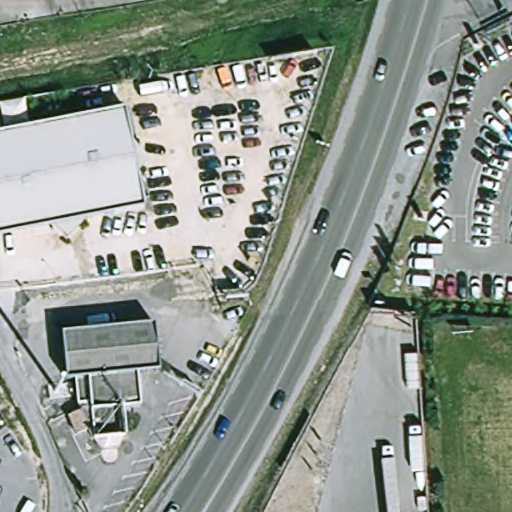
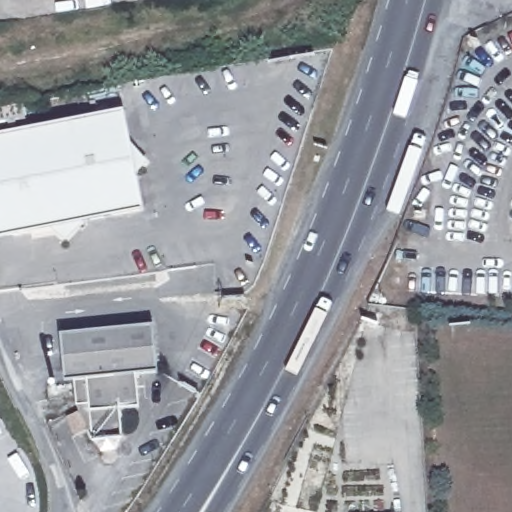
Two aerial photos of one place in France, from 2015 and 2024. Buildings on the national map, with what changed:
unchanged [(125,113),(134,156),(145,214),(77,227),(15,239),(0,229),(0,137),(125,113)]
unchanged [(143,409),(123,411),(127,439),(120,452),(104,454),(95,441),(92,432),(80,437),(72,420),(83,414),(80,408),(80,406),(78,382),(68,383),(63,335),(157,326),(162,374),(140,376),(143,409)]

